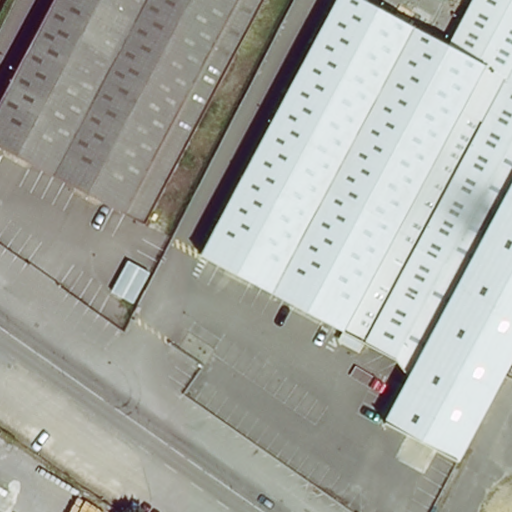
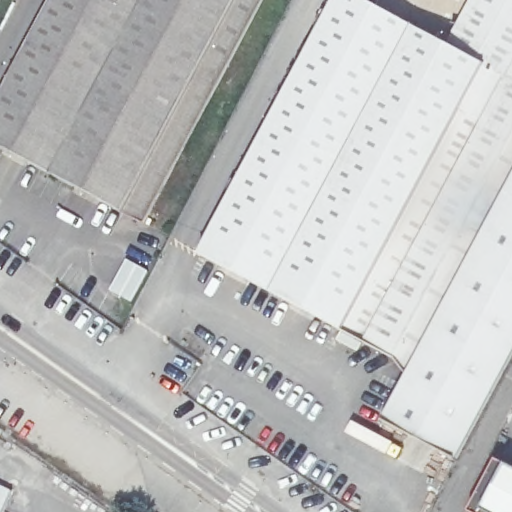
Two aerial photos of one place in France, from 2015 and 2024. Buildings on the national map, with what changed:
unchanged [(146,223),(0,144),(0,99),(53,0),(262,0),(146,223)]
unchanged [(400,364),(172,240),(297,0),(512,0),(512,158),(410,347),(400,364)]
unchanged [(460,466),(387,424),(425,355),(410,347),(512,158),(512,369),(460,466)]
new [(470,512),(498,460),(512,468),(512,512),(470,512)]

